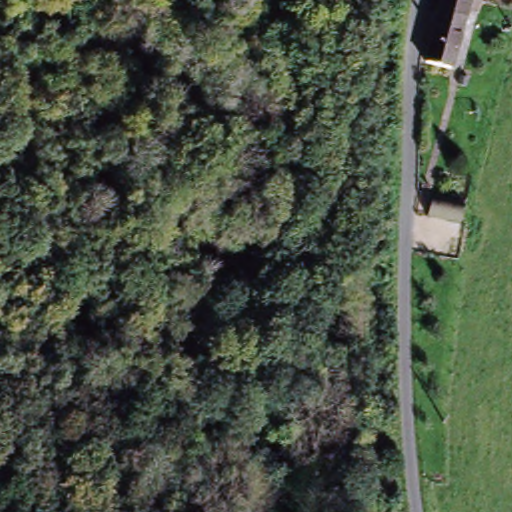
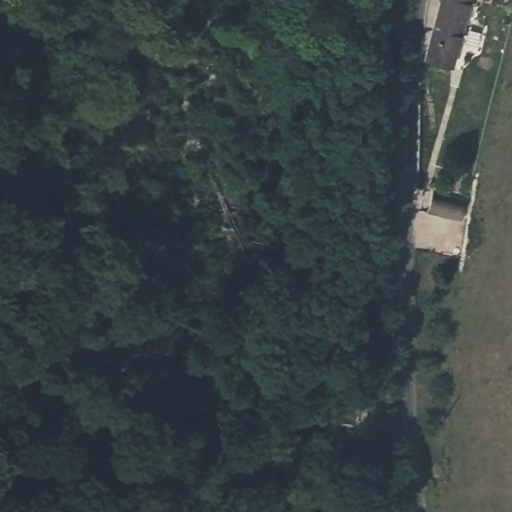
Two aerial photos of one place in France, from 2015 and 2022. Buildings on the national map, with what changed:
unchanged [(453,2),(453,0),(464,0),(464,5),(469,9),(453,67),(429,58),(444,1),(453,2)]

